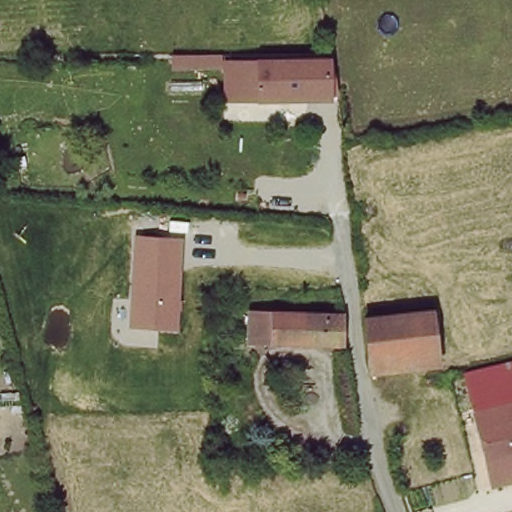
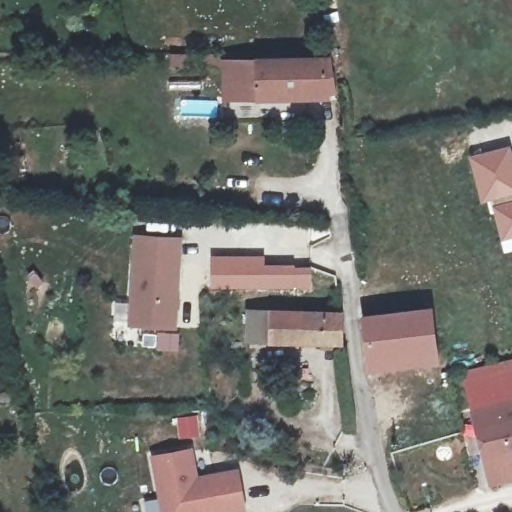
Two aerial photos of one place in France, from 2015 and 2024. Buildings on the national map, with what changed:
unchanged [(229,59),(319,57),(321,92),(229,96),(229,59)]
new [(512,147),(512,198),(491,204),(490,201),(481,203),(469,156),(512,146),(512,147)]
new [(500,240),(491,204),(512,198),(512,251),(504,253),(500,240)]
unchanged [(184,237),(178,331),(128,327),(134,235),(184,237)]
new [(210,255),(265,255),(266,262),(312,266),(313,288),(210,290),(210,255)]
unchanged [(255,339),(252,310),(332,312),(340,313),(339,344),(335,343),(255,339)]
unchanged [(369,371),(367,360),(362,324),(431,314),(440,356),(369,371)]
unchanged [(512,357),(512,407),(477,416),(467,368),(512,357)]
unchanged [(477,416),(512,407),(512,474),(490,479),(477,416)]
new [(231,512),(160,512),(150,456),(193,447),(198,476),(237,468),(244,510),(231,512)]

